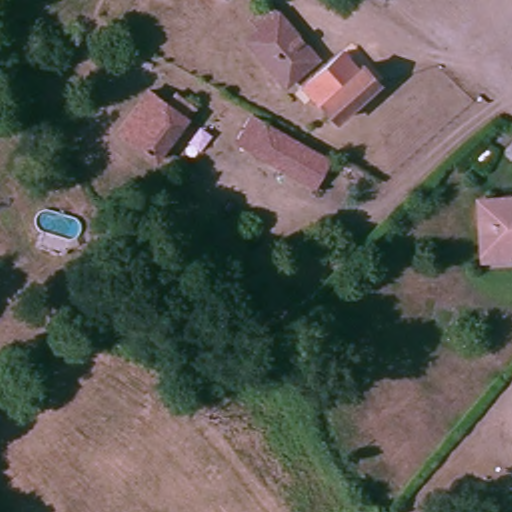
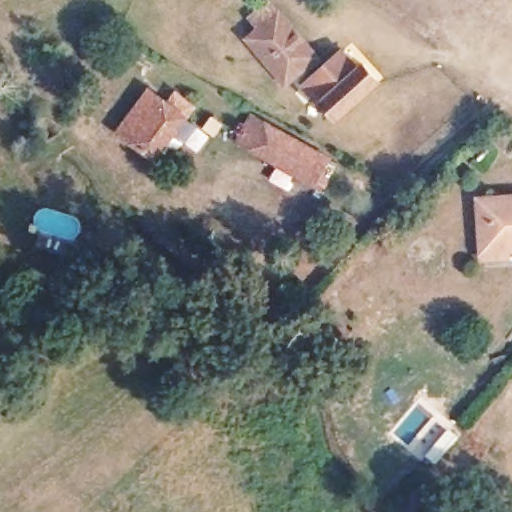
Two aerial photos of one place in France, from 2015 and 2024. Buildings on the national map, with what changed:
unchanged [(287,87),(250,42),(261,32),(251,20),(270,4),(280,16),(318,63),(287,87)]
unchanged [(302,93),(310,85),(342,55),(358,73),(362,69),(378,86),(340,123),(323,107),(318,111),(302,93)]
unchanged [(125,131),(156,90),(174,104),(180,97),(199,112),(193,119),(161,160),(125,131)]
unchanged [(327,162),(312,190),(234,147),(249,120),(327,162)]
unchanged [(503,251),(504,258),(482,259),(478,201),(512,199),(512,250),(503,251)]

